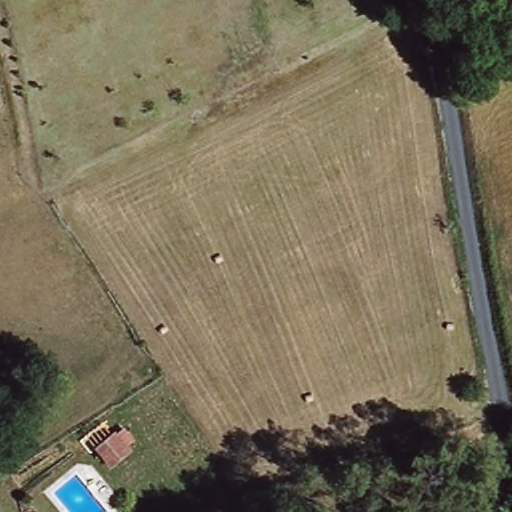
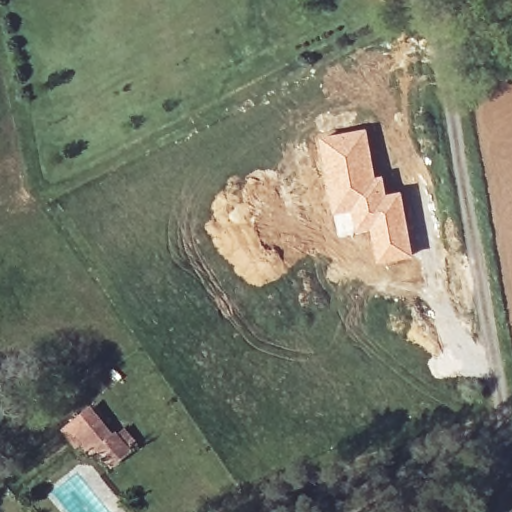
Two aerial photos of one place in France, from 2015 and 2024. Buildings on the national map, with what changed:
new [(368,127),(377,175),(384,174),(388,193),(402,190),(414,256),(378,265),(371,232),(337,240),(324,180),(318,136),(368,127)]
new [(114,433),(118,430),(120,432),(126,428),(139,446),(113,468),(98,450),(91,454),(83,445),(77,449),(62,429),(92,405),(114,433)]

